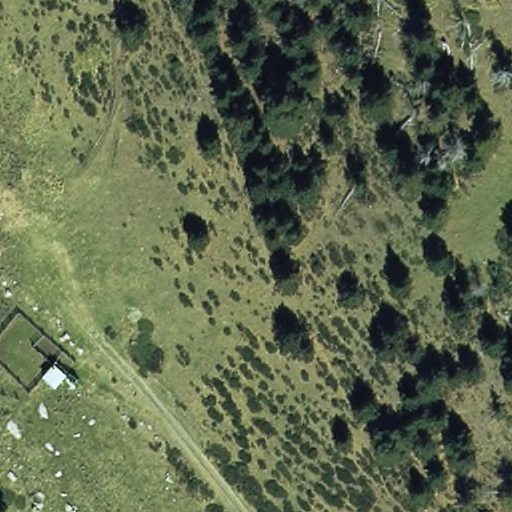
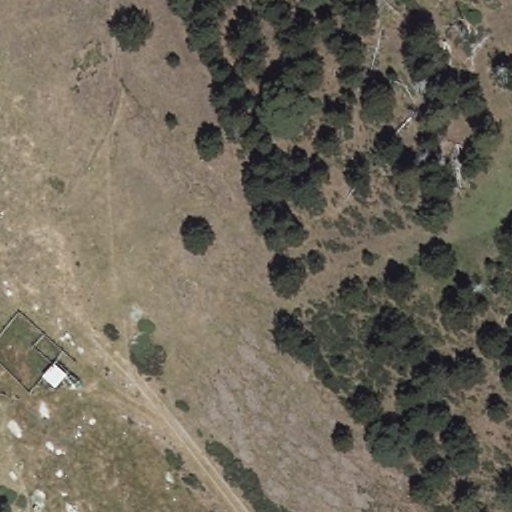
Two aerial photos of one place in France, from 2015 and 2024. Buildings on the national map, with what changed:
unchanged [(52,357),(66,370),(52,386),(37,373),(52,357)]

